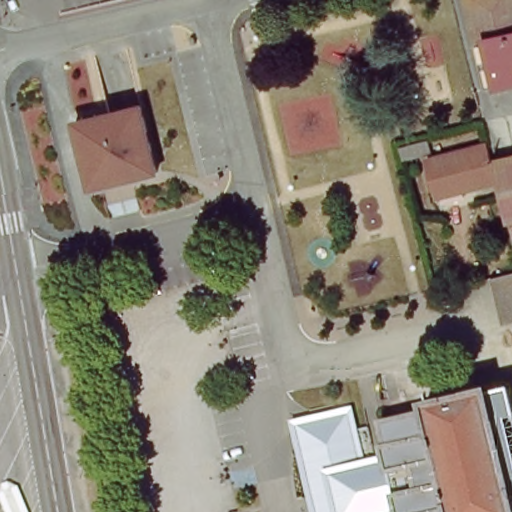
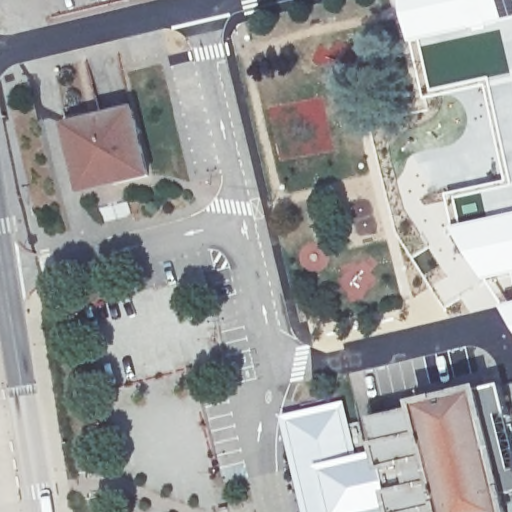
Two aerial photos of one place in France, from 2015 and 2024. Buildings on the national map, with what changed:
new [(444,196),(507,183),(485,86),(427,100),(413,45),(403,0),(512,0),(512,328),(451,233),(444,196)]
demolished [(460,0),(512,0),(512,91),(483,99),(460,0)]
unchanged [(135,113),(151,178),(87,194),(71,128),(135,113)]
demolished [(415,146),(419,160),(389,167),(386,153),(415,146)]
demolished [(426,202),(416,167),(479,151),(483,169),(488,187),(426,202)]
demolished [(486,169),(485,166),(512,160),(512,225),(499,228),(486,169)]
demolished [(502,229),(499,230),(499,228),(512,225),(512,266),(511,266),(502,229)]
demolished [(489,285),(512,279),(512,328),(500,331),(489,285)]
unchanged [(509,512),(392,512),(392,511),(388,497),(394,496),(412,491),(409,478),(406,467),(382,473),(379,459),(377,448),(382,447),(382,446),(376,424),(419,413),(419,412),(418,408),(481,392),(509,512)]
unchanged [(406,467),(409,478),(412,491),(394,496),(388,497),(392,511),(385,512),(307,512),(285,421),(318,413),(341,408),(355,465),(379,459),(382,473),(406,467)]

